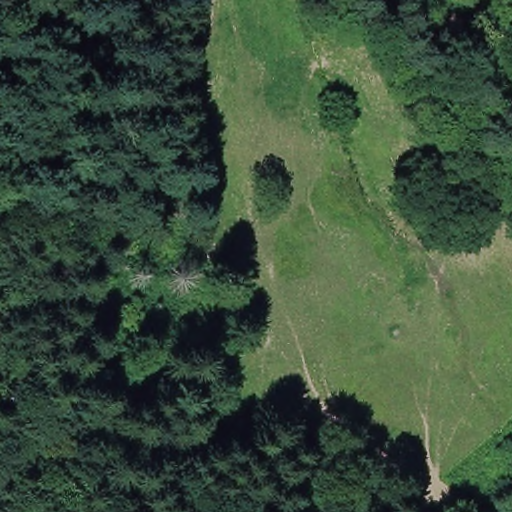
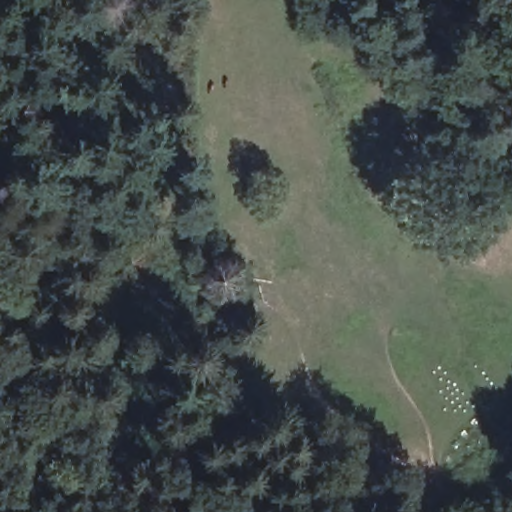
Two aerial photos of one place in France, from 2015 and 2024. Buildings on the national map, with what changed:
[]

